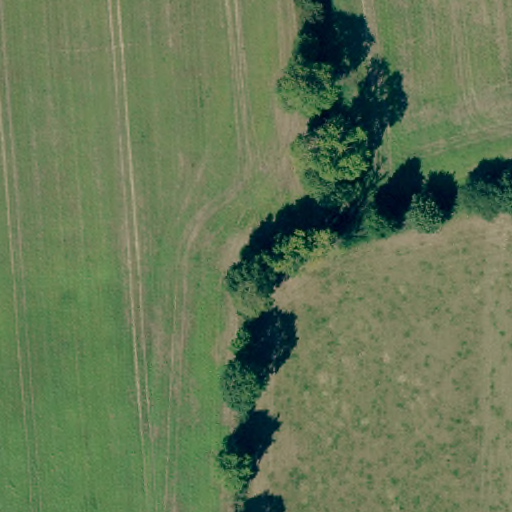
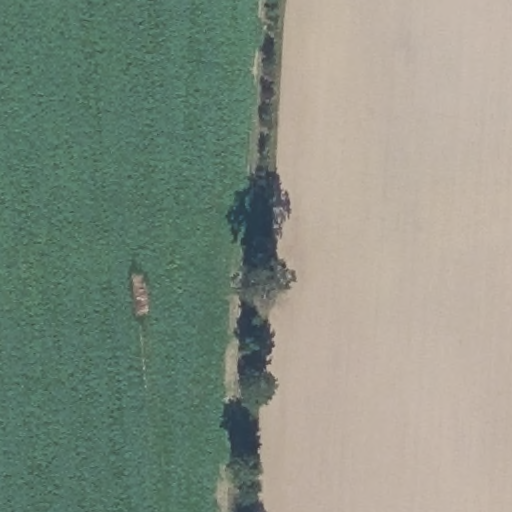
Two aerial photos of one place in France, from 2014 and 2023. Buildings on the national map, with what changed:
[]

